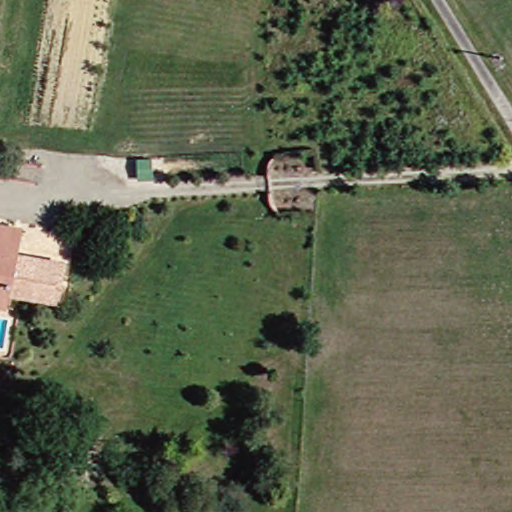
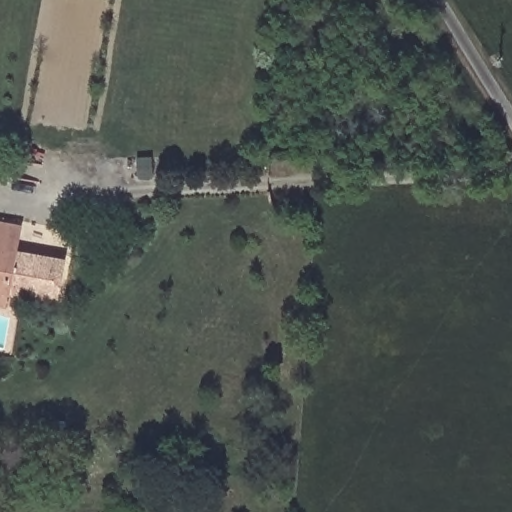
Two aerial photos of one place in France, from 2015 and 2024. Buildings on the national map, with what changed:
unchanged [(0,304),(0,226),(17,229),(15,255),(60,262),(55,300),(6,293),(3,305),(0,304)]

